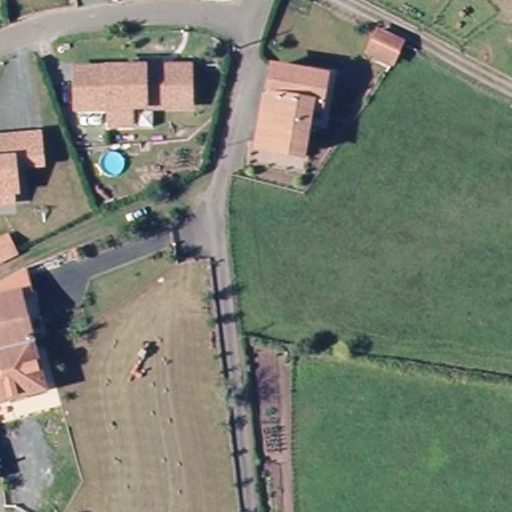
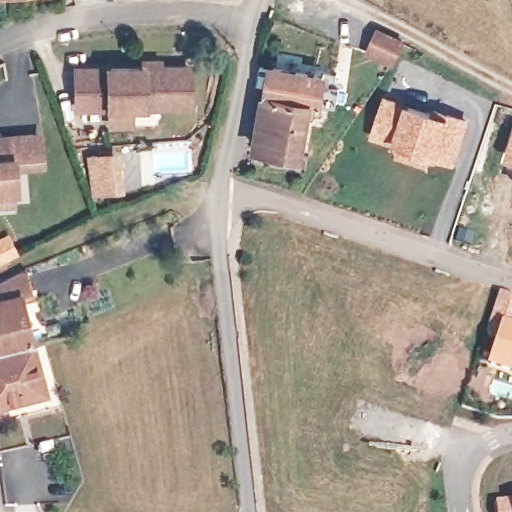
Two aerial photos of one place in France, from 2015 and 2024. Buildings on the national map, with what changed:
unchanged [(365,52),(377,32),(401,44),(390,66),(365,52)]
unchanged [(77,72),(142,70),(142,63),(159,62),(159,70),(189,69),(190,108),(132,109),(133,127),(111,127),(110,110),(78,111),(77,72)]
unchanged [(325,100),(313,99),(306,153),(261,147),(269,94),(272,90),(274,65),(328,72),(325,100)]
new [(382,94),(469,119),(454,165),(430,157),(426,169),(392,157),(396,147),(367,137),(382,94)]
new [(512,161),(502,157),(512,129),(512,161)]
unchanged [(9,142),(39,140),(42,167),(13,170),(12,170),(11,157),(0,159),(0,143),(9,142)]
new [(125,192),(91,197),(86,155),(119,151),(125,192)]
unchanged [(0,209),(0,159),(11,157),(12,170),(13,170),(15,195),(12,195),(13,207),(0,209)]
unchanged [(18,256),(0,265),(0,239),(10,236),(18,256)]
unchanged [(26,281),(30,277),(36,293),(22,298),(55,390),(0,410),(0,296),(26,281)]
new [(498,292),(512,296),(512,321),(511,322),(512,323),(512,372),(485,363),(495,337),(484,332),(498,292)]
new [(512,512),(495,512),(493,501),(512,499),(512,512)]

